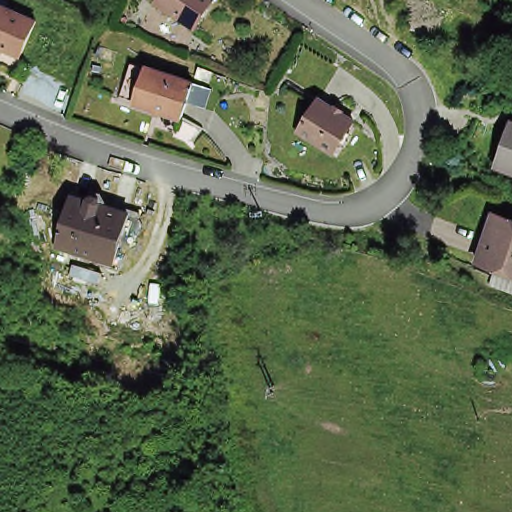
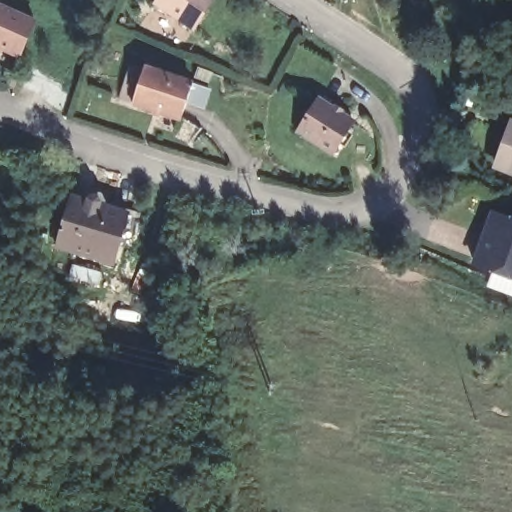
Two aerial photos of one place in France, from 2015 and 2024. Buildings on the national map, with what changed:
unchanged [(214,0),(192,32),(152,7),(157,0),(214,0)]
unchanged [(18,60),(0,51),(0,9),(34,23),(18,60)]
unchanged [(128,104),(140,69),(154,74),(154,72),(202,88),(192,126),(142,110),(143,108),(128,104)]
unchanged [(315,99),(352,124),(332,155),(295,131),(315,99)]
unchanged [(512,132),(512,178),(497,173),(512,132)]
unchanged [(143,229),(135,255),(120,251),(115,269),(57,255),(69,206),(87,210),(87,206),(92,204),(97,204),(100,207),(100,213),(128,220),(139,222),(143,229)]
unchanged [(491,212),(512,221),(512,279),(472,262),(491,212)]

